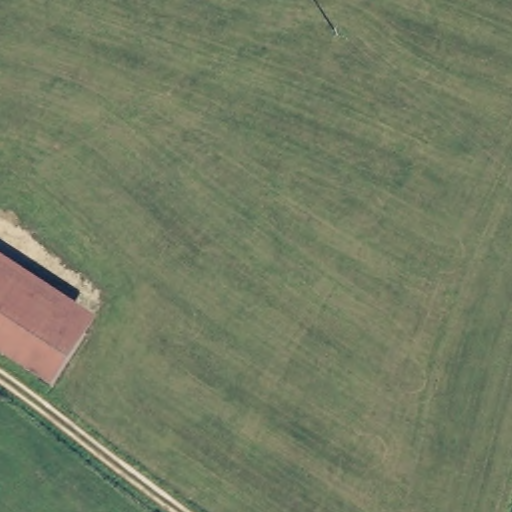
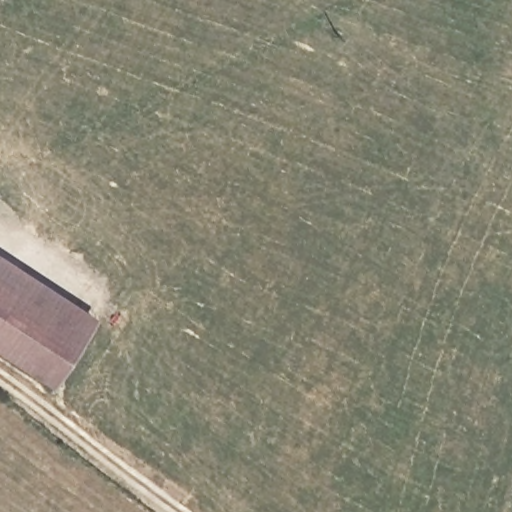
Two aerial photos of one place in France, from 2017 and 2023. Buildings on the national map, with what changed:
unchanged [(0,353),(0,257),(91,316),(47,386),(0,353)]

